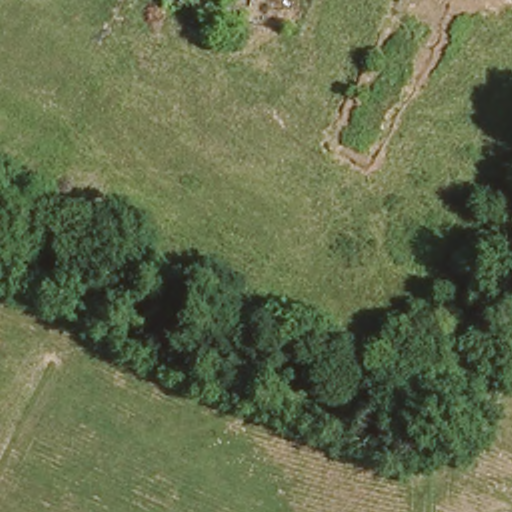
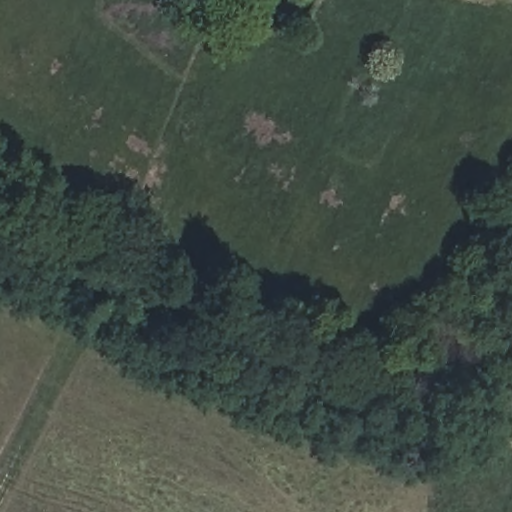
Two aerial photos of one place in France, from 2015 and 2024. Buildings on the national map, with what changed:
[]

